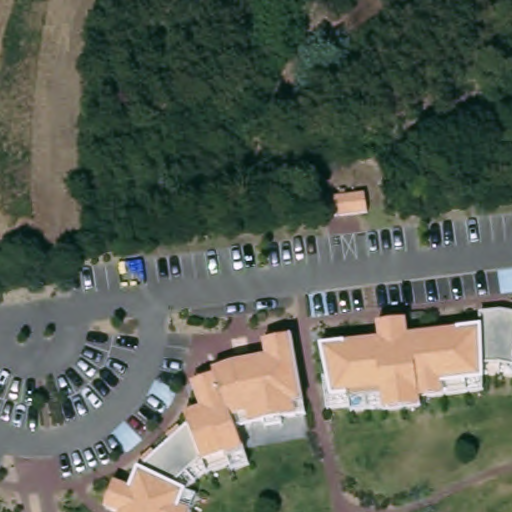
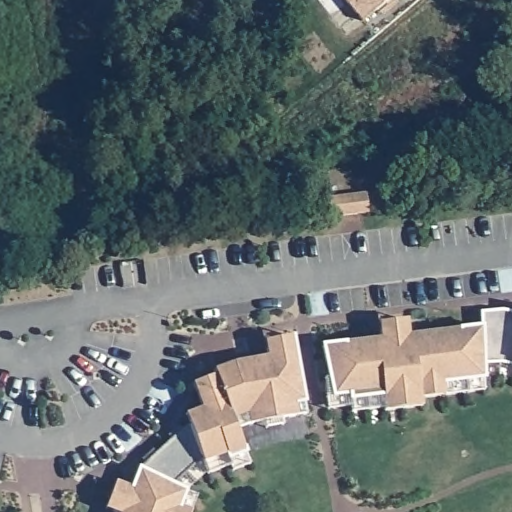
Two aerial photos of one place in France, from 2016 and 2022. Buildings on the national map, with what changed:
new [(361,21),(343,0),(385,0),(361,21)]
unchanged [(318,198),(367,192),(368,211),(319,216),(318,198)]
unchanged [(330,342),(350,340),(350,338),(386,334),(386,333),(385,318),(412,315),(414,330),(415,331),(466,325),(466,326),(487,323),(488,373),(449,377),(449,378),(450,391),(426,393),(427,402),(390,406),(389,391),(356,395),(355,389),(340,391),(330,342)]
unchanged [(191,413),(207,407),(198,381),(220,373),(219,368),(238,362),(271,355),(272,354),(268,340),(295,334),(308,398),(300,401),(303,413),(255,423),(252,412),(237,417),(250,451),(233,457),(231,452),(208,461),(191,413)]
unchanged [(120,480),(136,487),(144,468),(189,490),(183,505),(196,509),(194,512),(125,512),(110,506),(120,480)]

